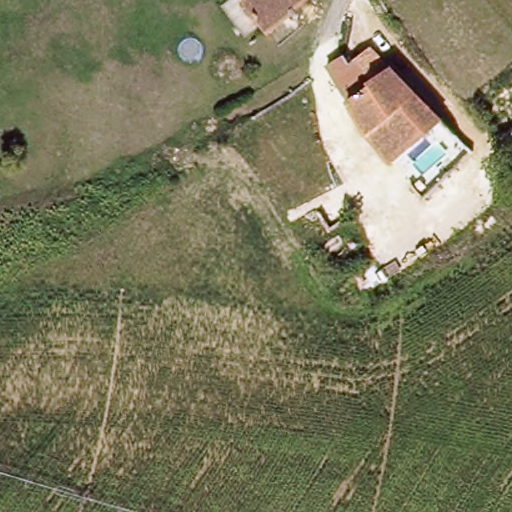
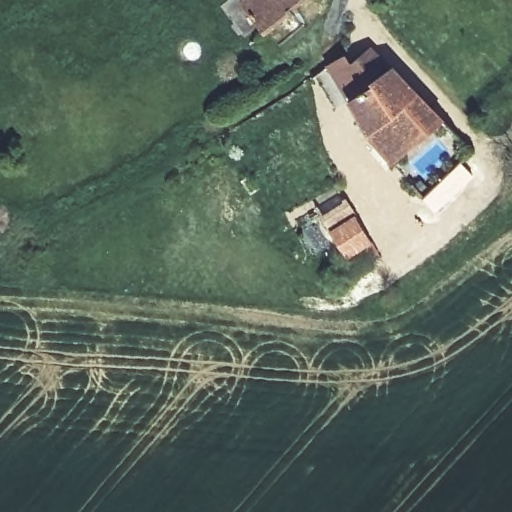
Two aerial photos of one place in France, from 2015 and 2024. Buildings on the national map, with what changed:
unchanged [(260,32),(238,0),(304,0),(260,32)]
unchanged [(341,48),(354,64),(375,47),(406,80),(426,100),(369,137),(355,117),(328,64),(341,48)]
unchanged [(444,118),(392,169),(369,137),(426,100),(444,118)]
new [(346,199),(371,243),(347,259),(320,215),(346,199)]

